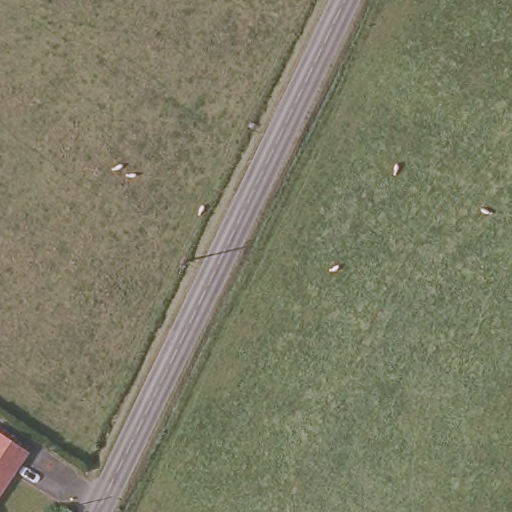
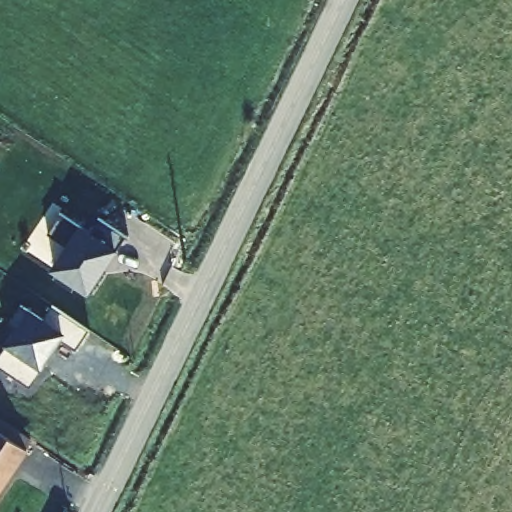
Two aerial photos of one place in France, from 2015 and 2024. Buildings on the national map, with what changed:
new [(50,269),(65,246),(54,222),(81,222),(93,231),(101,220),(124,235),(120,241),(122,243),(89,294),(50,269)]
new [(7,346),(4,344),(15,327),(9,323),(21,305),(28,308),(43,320),(52,306),(88,330),(75,350),(61,340),(42,370),(30,386),(0,367),(0,356),(7,346)]
unchanged [(0,492),(0,424),(32,445),(0,492)]

